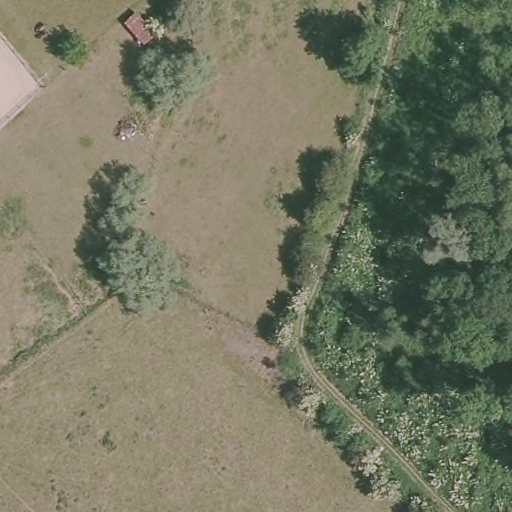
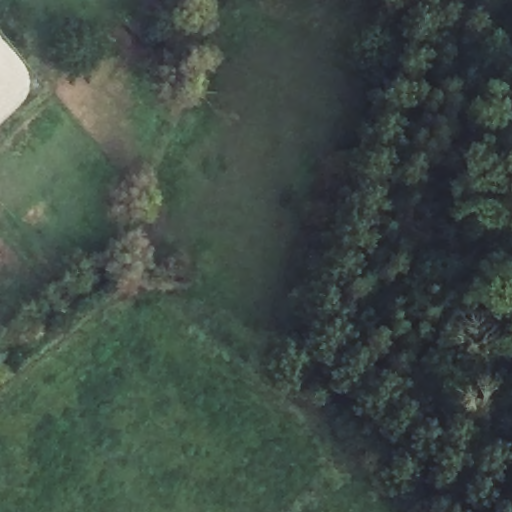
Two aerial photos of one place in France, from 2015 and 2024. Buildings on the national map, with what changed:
[]

